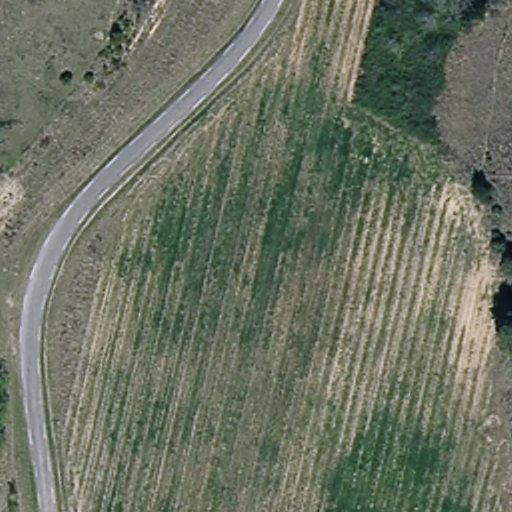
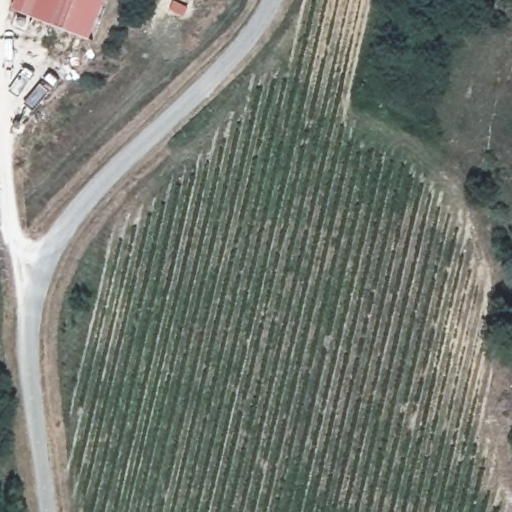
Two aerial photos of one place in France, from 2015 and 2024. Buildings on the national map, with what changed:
new [(12,7),(14,0),(105,0),(90,38),(12,7)]

